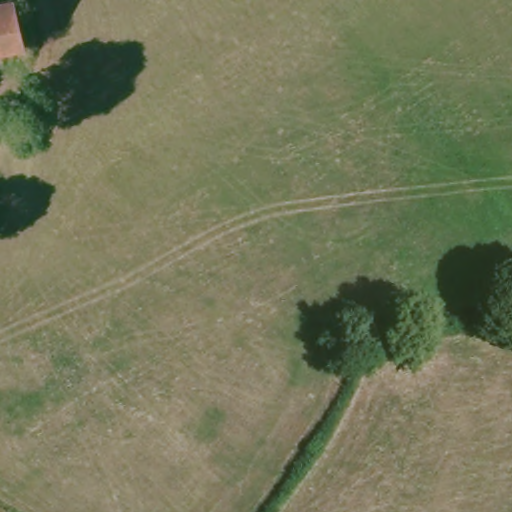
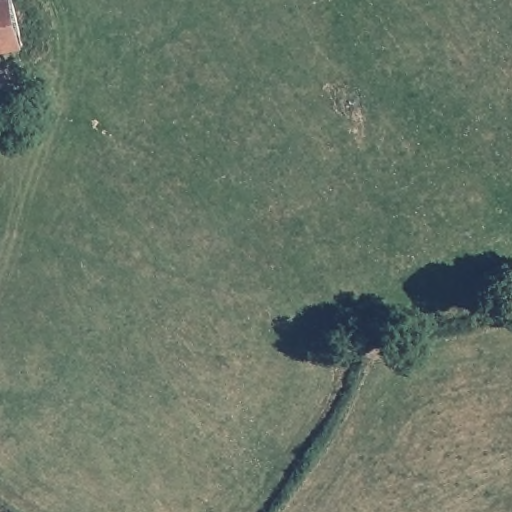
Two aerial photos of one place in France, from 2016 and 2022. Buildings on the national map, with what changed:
unchanged [(42,10),(55,59),(0,68),(0,17),(42,10)]

